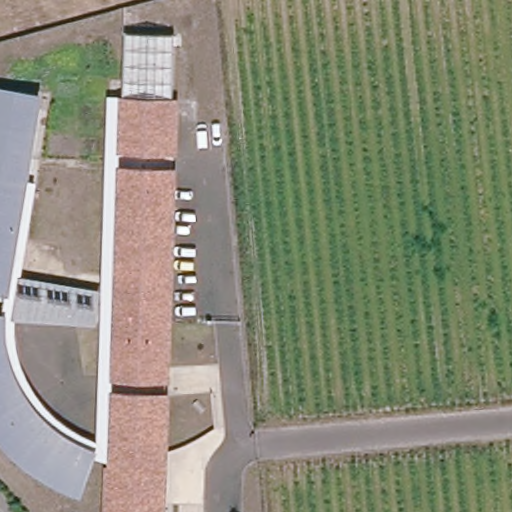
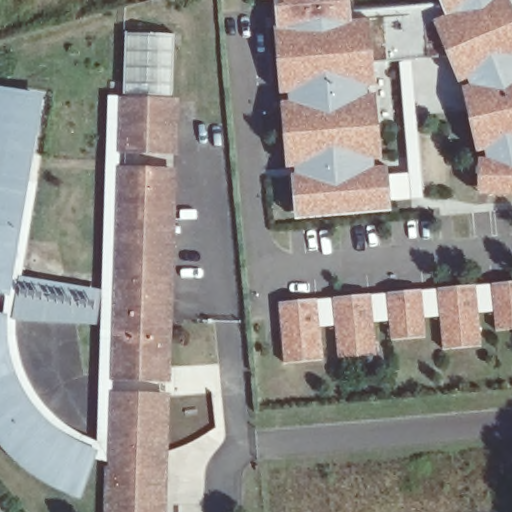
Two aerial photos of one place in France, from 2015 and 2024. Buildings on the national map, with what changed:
new [(350,14),(442,8),(440,0),(509,0),(512,8),(512,196),(479,196),(477,153),(450,63),(373,65),(390,211),(298,219),(291,168),(287,169),(274,30),(279,28),(275,1),(264,1),(264,0),(348,0),(350,14)]
unchanged [(173,38),(172,97),(179,97),(177,157),(118,155),(125,37),(173,38)]
unchanged [(13,274),(10,295),(5,295),(0,294),(0,88),(43,96),(13,274)]
unchanged [(177,170),(170,384),(111,382),(113,327),(114,288),(118,168),(177,170)]
unchanged [(10,295),(13,274),(114,288),(113,327),(6,322),(6,316),(10,295)]
new [(512,283),(512,330),(496,330),(494,315),(478,316),(480,346),(443,347),(440,319),(423,320),(424,338),(390,340),(388,323),(373,324),(376,355),(338,358),(335,328),(319,329),(321,360),(282,363),(278,304),(512,283)]
unchanged [(6,316),(6,322),(6,338),(10,360),(17,380),(28,400),(41,417),(58,432),(75,443),(90,450),(96,452),(80,499),(53,488),(30,474),(11,457),(0,445),(0,315),(3,316),(6,316)]
unchanged [(166,512),(103,512),(105,466),(109,466),(111,393),(170,395),(166,512)]

